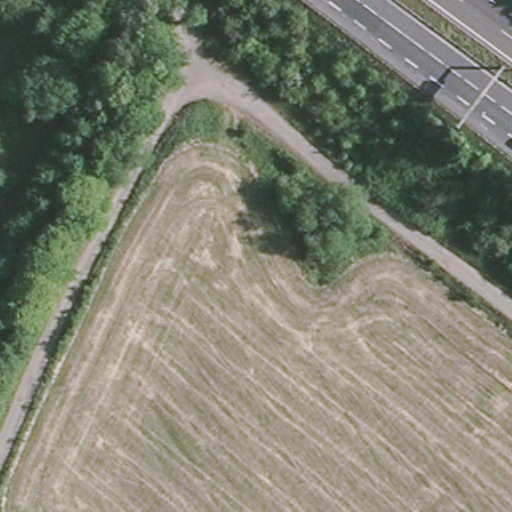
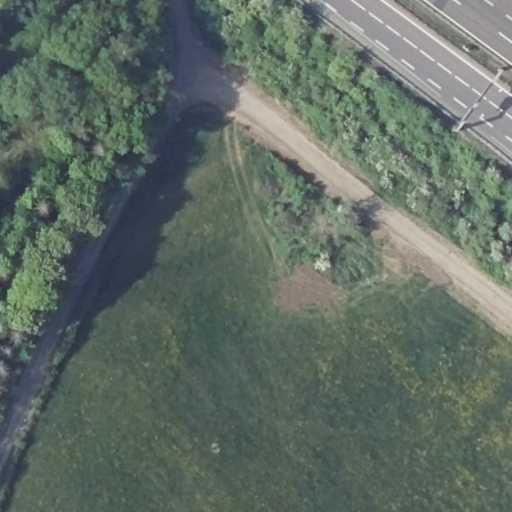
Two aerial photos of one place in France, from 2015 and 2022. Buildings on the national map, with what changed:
[]

